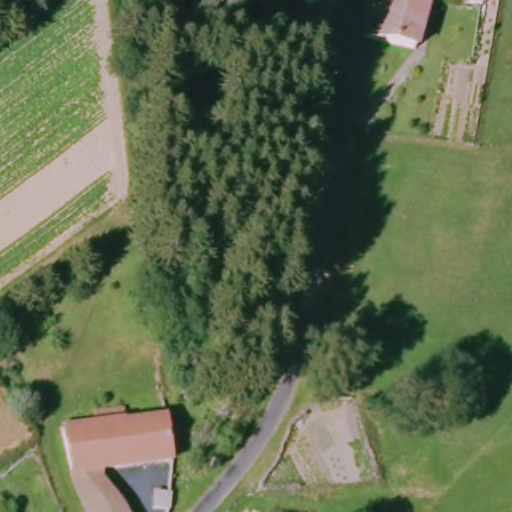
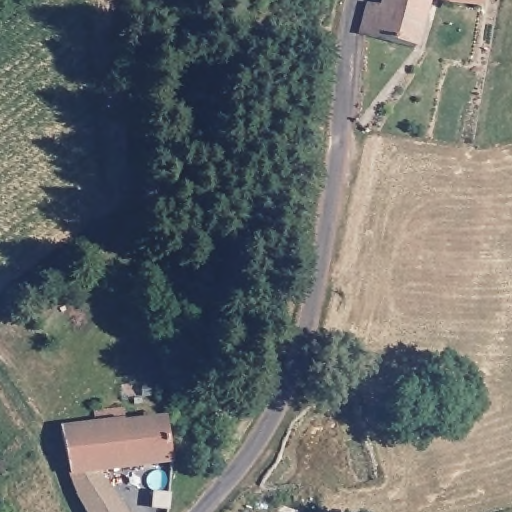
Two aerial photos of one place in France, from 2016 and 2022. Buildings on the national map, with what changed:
unchanged [(413,47),(356,33),(366,3),(379,6),(381,0),(482,0),(482,7),(425,4),(413,47)]
unchanged [(68,474),(63,438),(63,427),(98,425),(96,411),(123,407),(126,424),(164,419),(173,462),(172,466),(106,476),(101,480),(107,491),(123,512),(84,512),(68,474)]
unchanged [(156,498),(169,502),(168,512),(155,512),(156,498)]

